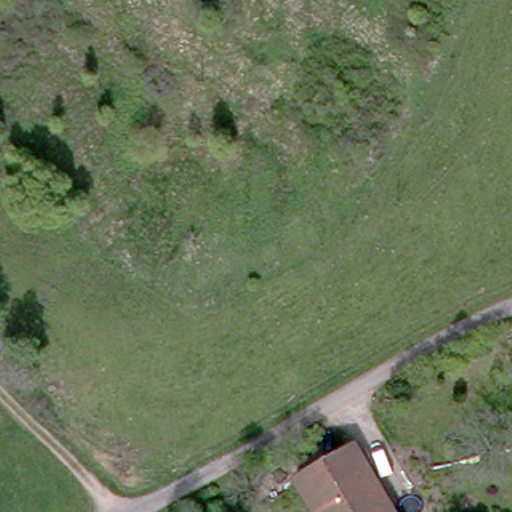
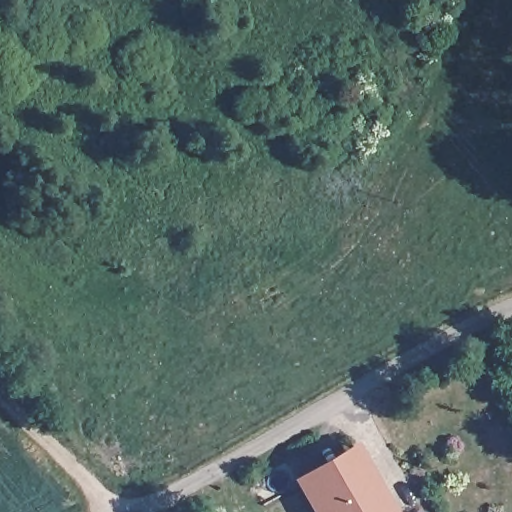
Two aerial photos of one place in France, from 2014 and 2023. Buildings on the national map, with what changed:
unchanged [(297,481),(352,448),(360,462),(304,495),(297,481)]
unchanged [(360,462),(389,512),(314,512),(304,495),(360,462)]

